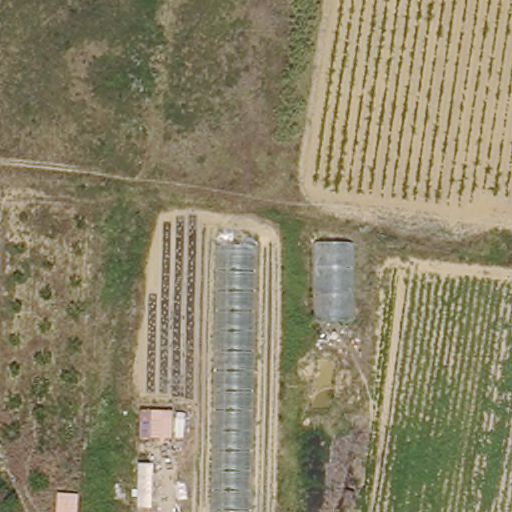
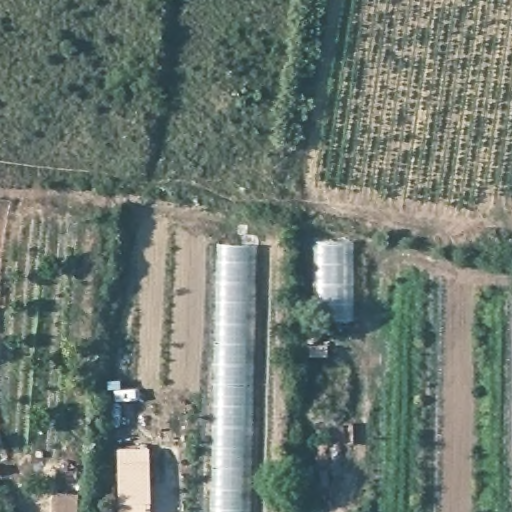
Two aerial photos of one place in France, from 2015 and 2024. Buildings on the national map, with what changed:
unchanged [(318,240),(351,240),(351,321),(319,322),(318,240)]
unchanged [(218,245),(256,246),(250,512),(214,512),(218,245)]
new [(147,457),(147,512),(116,512),(116,456),(147,457)]

